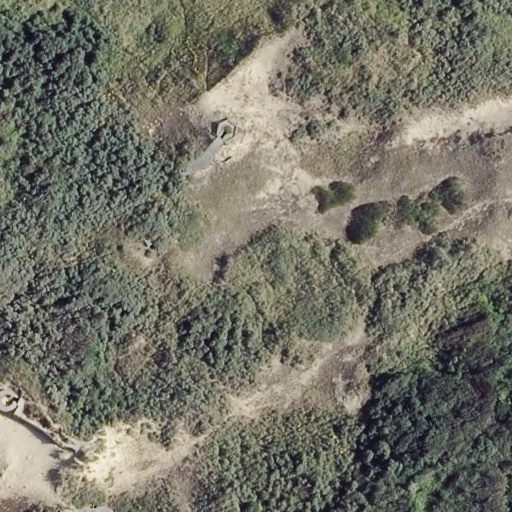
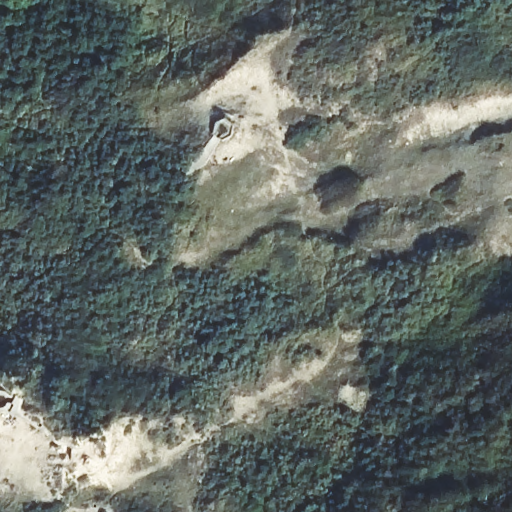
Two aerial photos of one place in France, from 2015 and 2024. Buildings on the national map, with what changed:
unchanged [(241,129),(198,185),(164,160),(210,104),(241,129)]
unchanged [(11,420),(0,414),(0,384),(24,397),(11,420)]

